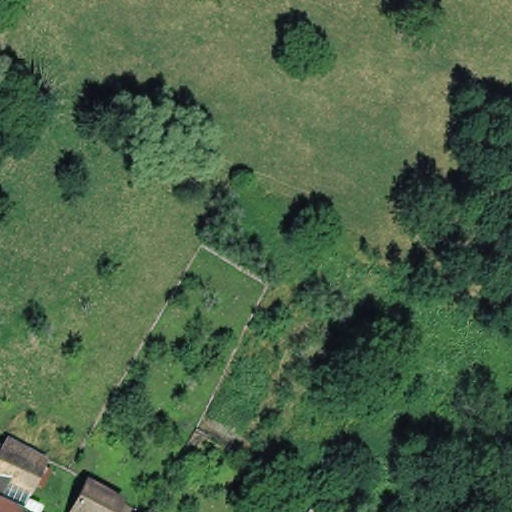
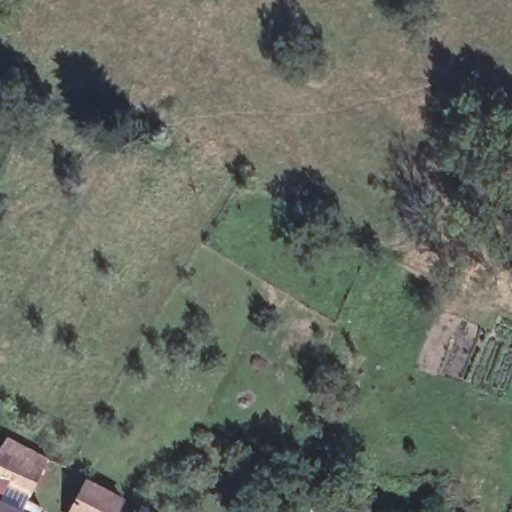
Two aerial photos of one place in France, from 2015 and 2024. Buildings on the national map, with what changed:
unchanged [(10,436),(50,457),(36,495),(0,475),(0,447),(3,449),(10,436)]
unchanged [(113,512),(73,512),(69,510),(86,478),(120,498),(113,512)]
unchanged [(0,493),(0,485),(3,487),(0,493)]
unchanged [(28,512),(0,512),(0,494),(34,500),(28,512)]
unchanged [(48,507),(45,512),(28,512),(34,500),(48,507)]

